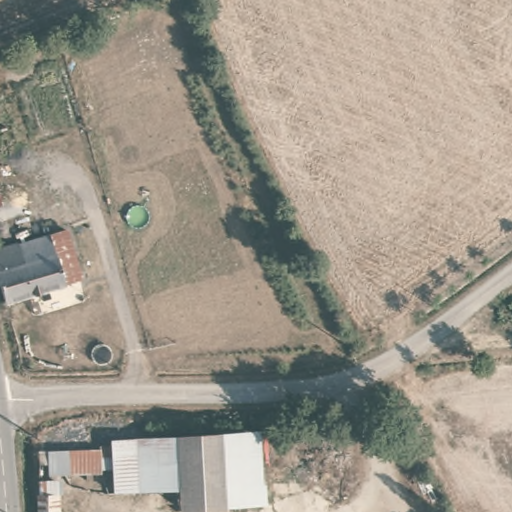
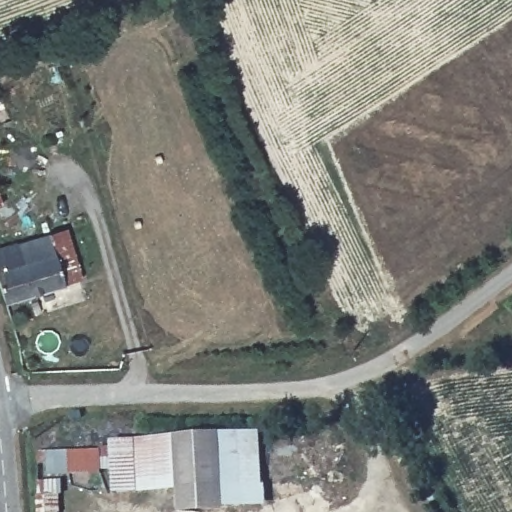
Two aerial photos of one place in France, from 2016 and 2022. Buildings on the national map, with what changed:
unchanged [(0,203),(0,186),(5,201),(0,203)]
unchanged [(50,234),(69,228),(84,278),(66,284),(6,303),(0,282),(0,245),(21,238),(22,243),(50,234)]
unchanged [(262,433),(266,508),(181,510),(180,486),(112,488),(111,471),(40,473),(39,448),(262,433)]
unchanged [(59,485),(59,512),(40,512),(40,485),(59,485)]

